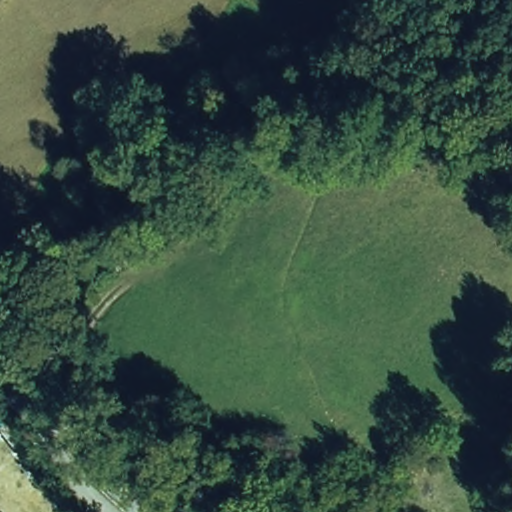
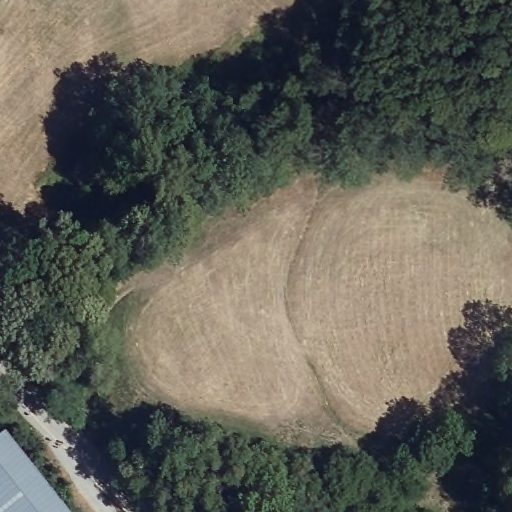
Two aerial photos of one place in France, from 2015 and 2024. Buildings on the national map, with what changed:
new [(1,432),(7,428),(73,512),(0,512),(0,433),(1,432)]
new [(1,432),(0,433),(0,431),(1,432)]
demolished [(44,512),(0,512),(0,504),(31,486),(44,512)]

